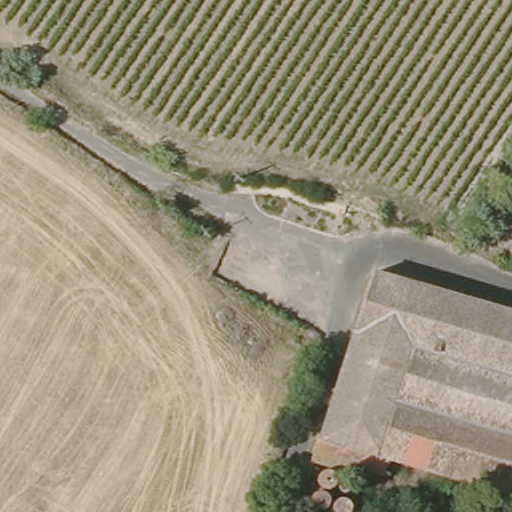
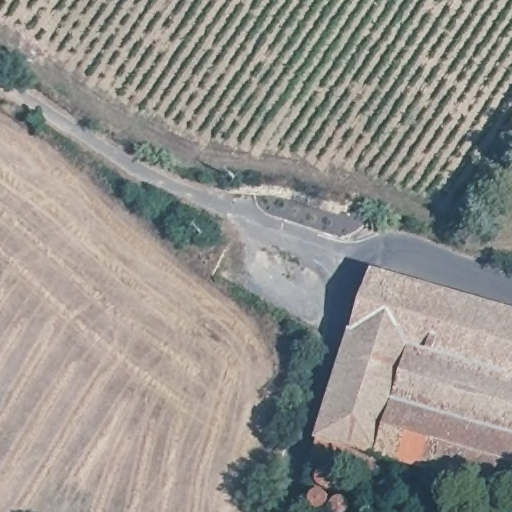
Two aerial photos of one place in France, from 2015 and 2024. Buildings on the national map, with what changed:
unchanged [(360,463),(358,470),(320,459),(337,403),(381,270),(512,308),(512,490),(489,483),(396,456),(392,471),(360,463)]

